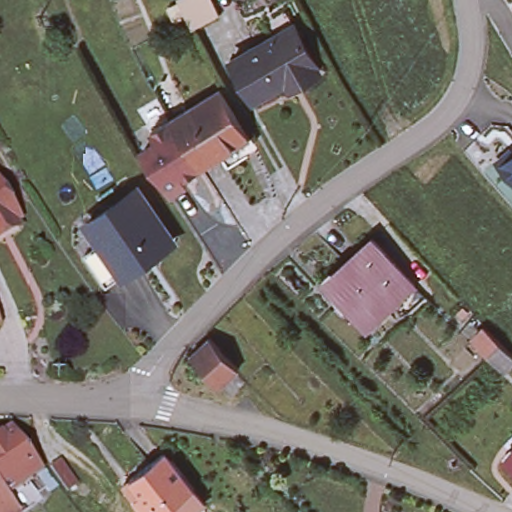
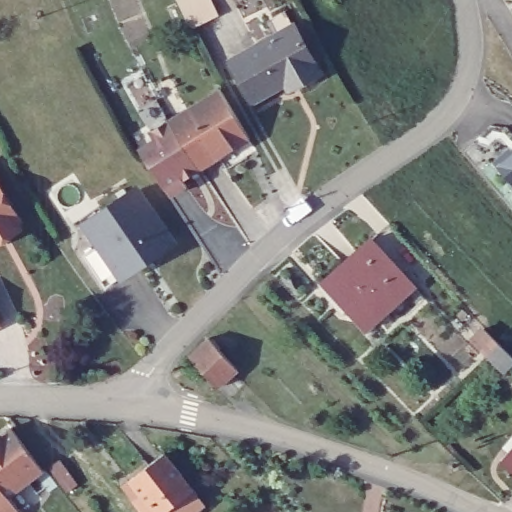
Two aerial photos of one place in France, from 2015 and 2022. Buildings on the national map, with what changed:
unchanged [(172,1),(175,0),(211,0),(220,17),(188,35),(172,1)]
unchanged [(286,81),(255,99),(232,59),(295,25),(320,71),(300,82),(290,88),(286,81)]
unchanged [(221,88),(251,137),(200,169),(175,130),(170,120),(221,88)]
unchanged [(170,120),(175,130),(200,169),(183,179),(187,185),(171,195),(168,190),(142,151),(157,141),(150,131),(170,119),(170,120)]
unchanged [(511,173),(509,175),(493,156),(507,145),(510,147),(512,146),(512,174),(511,173)]
unchanged [(101,245),(87,223),(137,189),(173,241),(122,275),(116,280),(106,286),(85,255),(95,249),(101,245)]
unchanged [(0,199),(15,224),(0,233),(0,199)]
unchanged [(342,267),(338,264),(367,238),(410,285),(362,329),(343,308),(351,301),(346,295),(342,298),(326,281),(342,267)]
unchanged [(0,323),(0,319),(1,322),(0,323)]
unchanged [(503,370),(487,355),(472,340),(485,327),(500,342),(512,354),(512,361),(503,370)]
unchanged [(205,342),(234,373),(214,391),(185,360),(205,342)]
unchanged [(192,375),(200,382),(195,386),(188,378),(192,375)]
unchanged [(39,470),(4,495),(16,512),(0,512),(0,431),(7,426),(39,470)]
unchanged [(165,452),(194,490),(165,512),(144,512),(135,500),(123,485),(130,480),(165,452)]
unchanged [(507,463),(512,458),(512,468),(507,463)]
unchanged [(56,459),(73,482),(62,490),(45,467),(56,459)]

